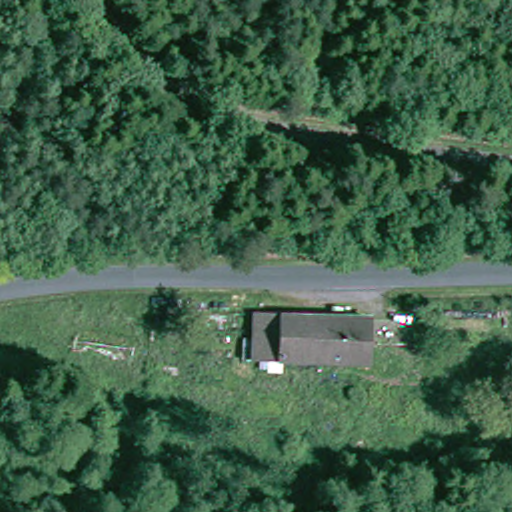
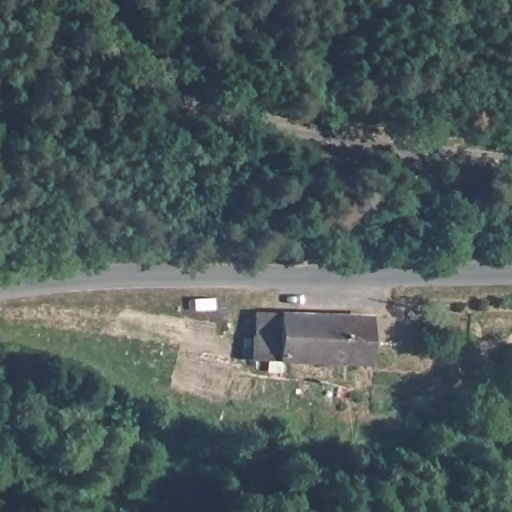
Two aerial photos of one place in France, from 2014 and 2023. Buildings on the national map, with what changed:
unchanged [(365,360),(281,359),(263,359),(263,356),(265,328),(265,315),(283,315),(367,315),(365,360)]

